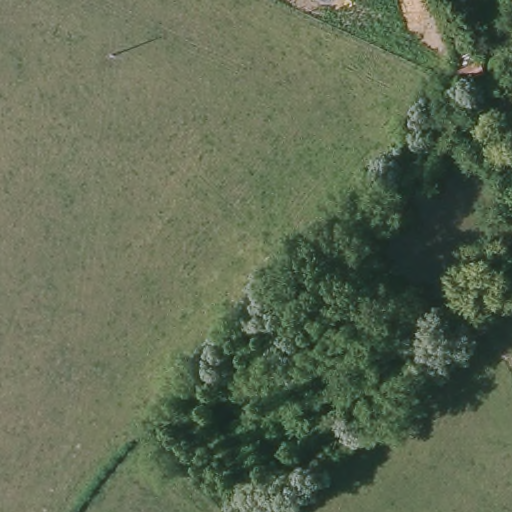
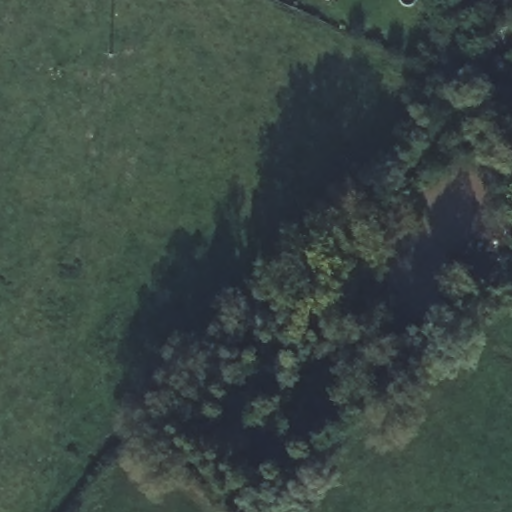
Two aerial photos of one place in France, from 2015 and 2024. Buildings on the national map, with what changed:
unchanged [(320,3),(318,0),(323,0),(320,3)]

